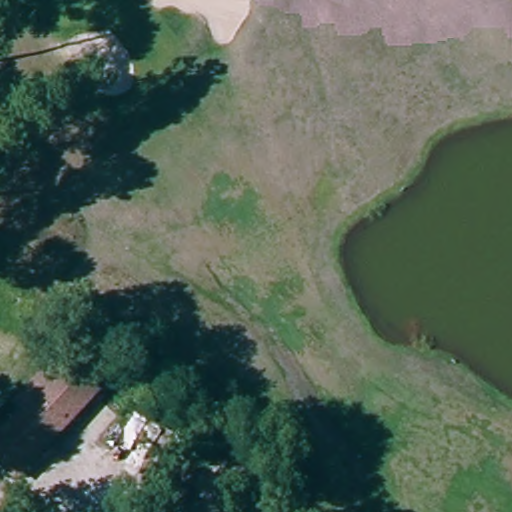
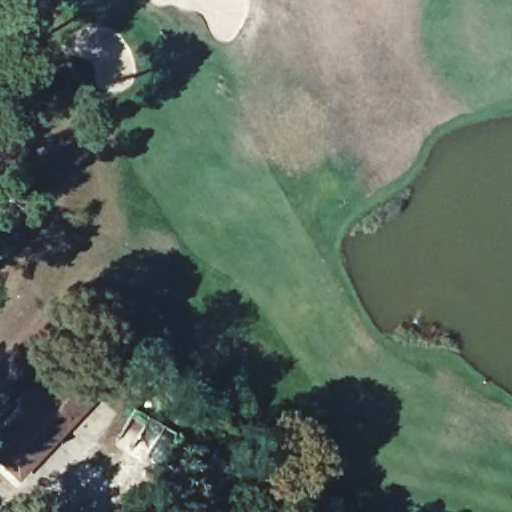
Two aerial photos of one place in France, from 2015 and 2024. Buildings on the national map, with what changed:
unchanged [(0,460),(0,432),(25,407),(17,400),(32,385),(47,370),(61,357),(68,363),(79,352),(108,382),(96,394),(16,476),(0,460)]

